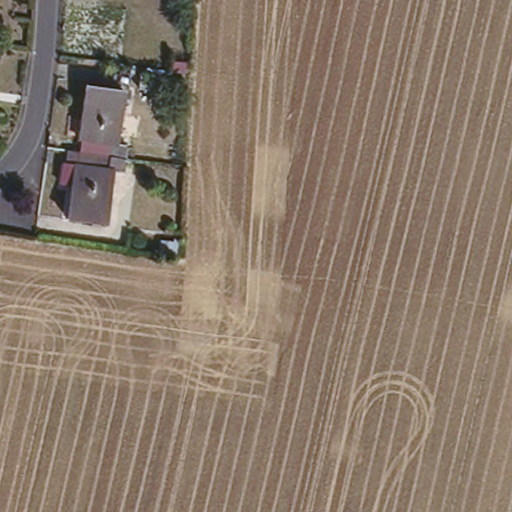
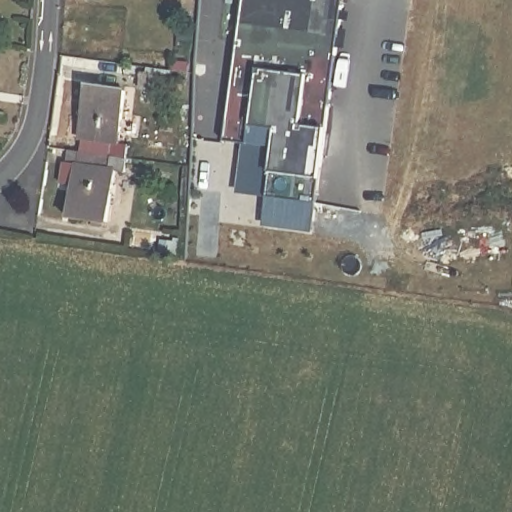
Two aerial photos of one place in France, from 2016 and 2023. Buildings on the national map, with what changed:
new [(314,227),(263,222),(265,188),(236,185),(240,136),(223,135),(242,0),(342,0),(314,227)]
unchanged [(182,95),(159,91),(157,105),(138,102),(140,89),(138,88),(140,74),(185,82),(182,95)]
unchanged [(118,143),(127,145),(125,158),(79,151),(81,138),(78,138),(85,85),(125,91),(118,143)]
unchanged [(91,225),(91,221),(67,217),(71,185),(60,184),(62,167),(67,163),(65,163),(67,150),(79,151),(125,158),(123,172),(113,170),(106,223),(99,222),(99,226),(91,225)]
unchanged [(177,255),(158,252),(161,239),(179,242),(177,255)]

